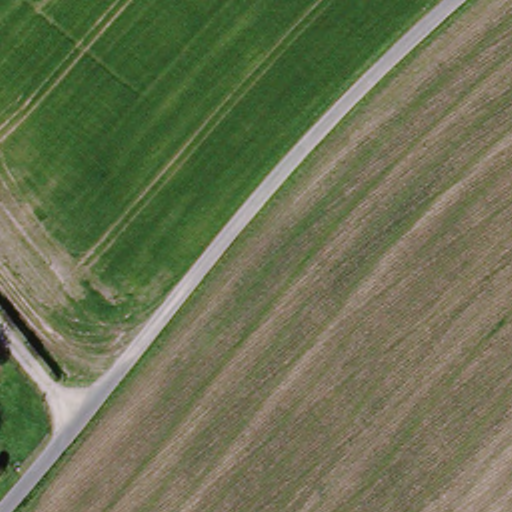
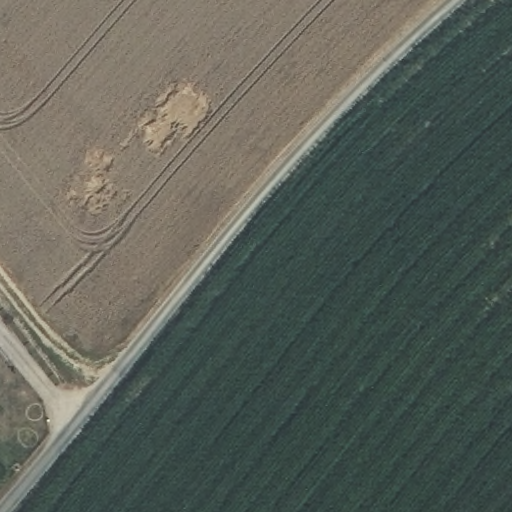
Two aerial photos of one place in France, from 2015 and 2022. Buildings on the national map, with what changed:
[]

